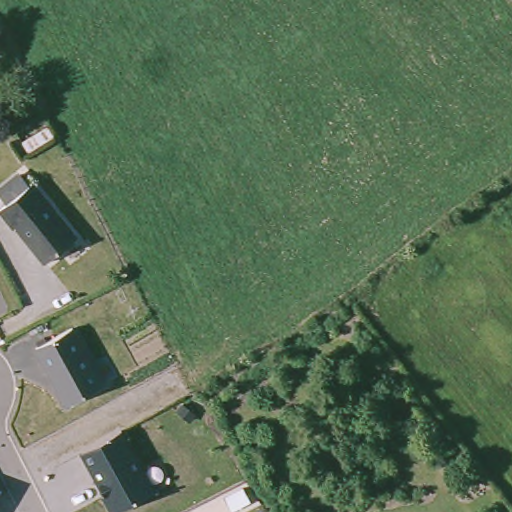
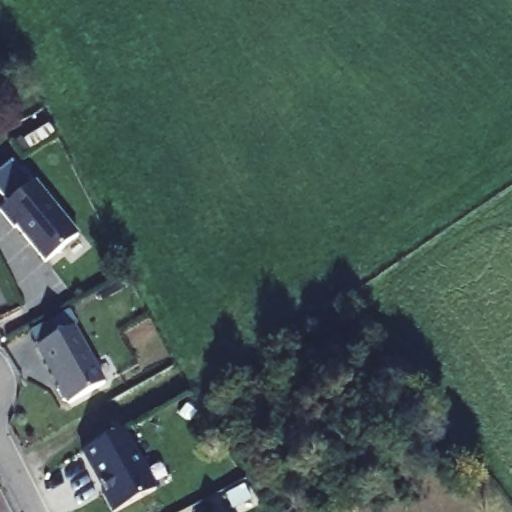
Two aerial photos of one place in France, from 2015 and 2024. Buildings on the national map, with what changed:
unchanged [(12,229),(0,214),(0,208),(6,201),(0,194),(0,187),(19,172),(29,184),(32,180),(77,235),(44,263),(15,226),(12,229)]
unchanged [(35,348),(72,325),(104,382),(65,405),(35,348)]
unchanged [(116,512),(111,512),(80,450),(122,428),(154,492),(116,512)]

